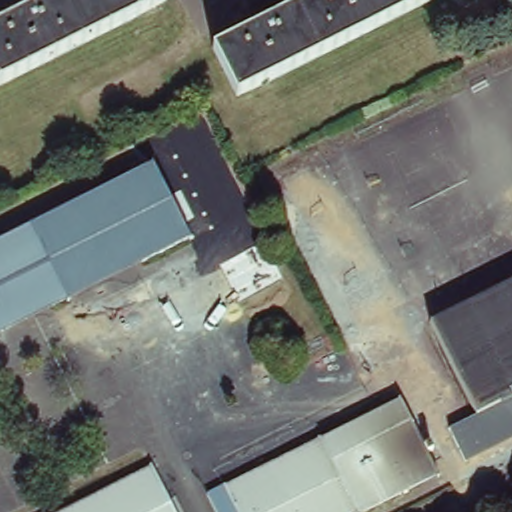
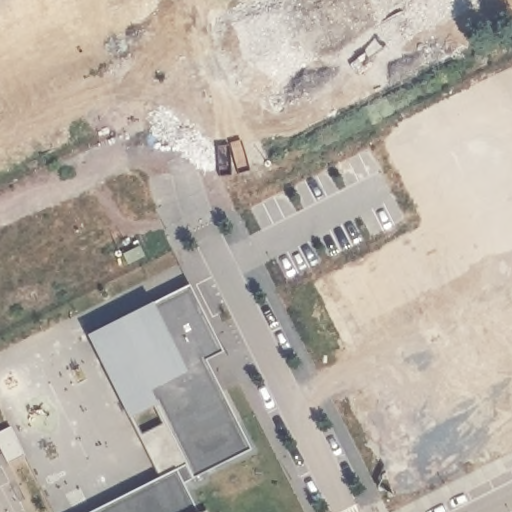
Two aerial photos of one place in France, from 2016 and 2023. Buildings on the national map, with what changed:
unchanged [(0,23),(46,0),(162,0),(0,81),(0,23)]
unchanged [(237,96),(213,50),(311,0),(426,0),(237,96)]
demolished [(190,234),(141,258),(120,217),(49,252),(70,294),(51,304),(30,262),(0,277),(0,238),(153,161),(190,234)]
demolished [(460,463),(443,430),(471,416),(425,325),(512,281),(512,436),(460,463)]
new [(87,340),(190,289),(213,331),(193,339),(250,452),(182,487),(194,512),(95,512),(162,478),(87,340)]
demolished [(218,488),(225,485),(226,487),(318,441),(319,443),(375,415),(401,402),(439,475),(366,512),(215,512),(207,493),(218,488)]
demolished [(174,512),(67,512),(153,469),(174,512)]

